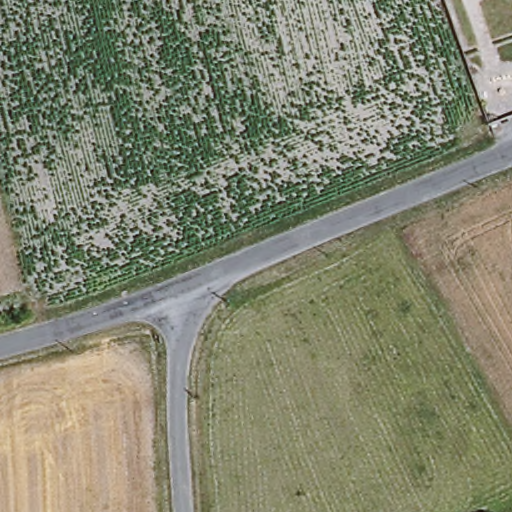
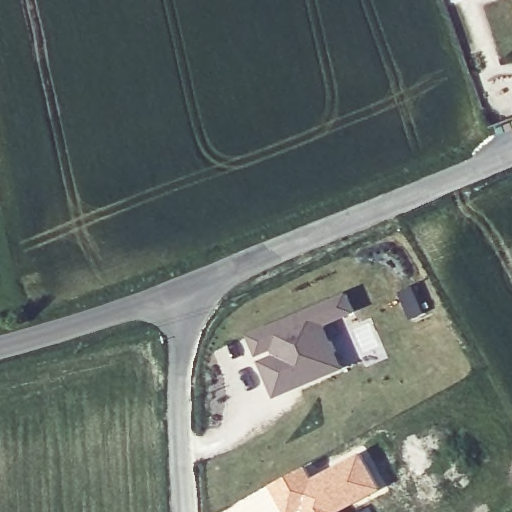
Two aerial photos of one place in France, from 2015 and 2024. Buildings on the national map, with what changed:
new [(249,333),(349,292),(356,311),(326,324),(344,367),(277,396),(249,333)]
new [(308,463),(315,475),(362,450),(383,487),(339,512),(307,512),(305,509),(299,512),(289,512),(273,482),(308,463)]
new [(358,508),(359,512),(351,512),(358,508)]

